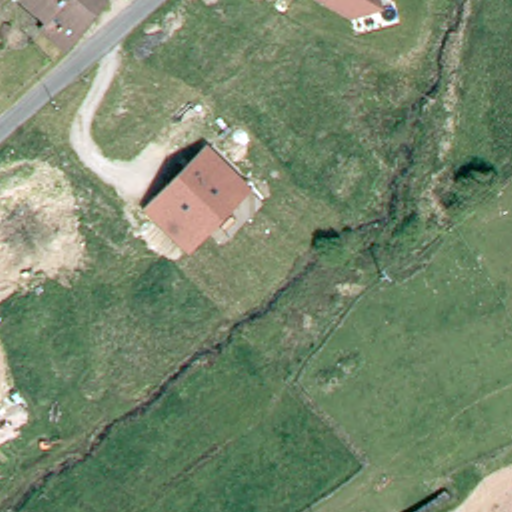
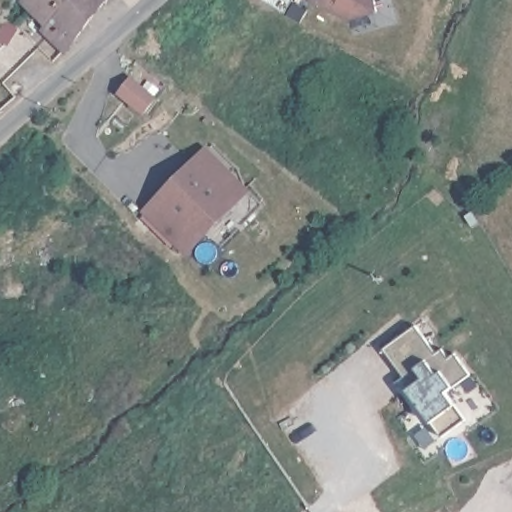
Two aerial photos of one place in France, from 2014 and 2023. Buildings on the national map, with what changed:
unchanged [(20,0),(95,0),(99,4),(60,51),(44,36),(35,30),(43,21),(20,0)]
unchanged [(347,20),(313,0),(374,0),(377,12),(347,20)]
unchanged [(0,31),(5,24),(13,30),(4,44),(0,41),(0,31)]
unchanged [(250,192),(187,256),(142,211),(206,146),(250,192)]
unchanged [(476,215),(491,203),(498,212),(485,224),(476,215)]
new [(404,376),(385,348),(417,326),(436,353),(443,348),(449,357),(455,353),(468,375),(452,386),(446,391),(455,404),(465,420),(442,436),(432,421),(409,390),(397,380),(404,376)]

